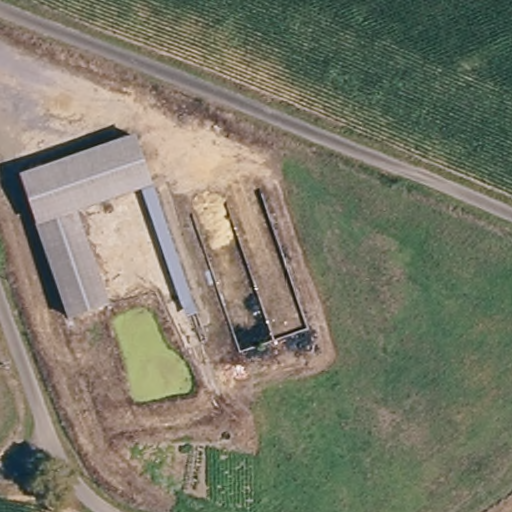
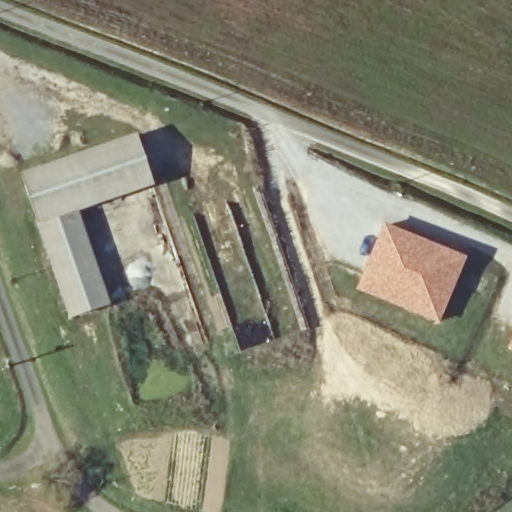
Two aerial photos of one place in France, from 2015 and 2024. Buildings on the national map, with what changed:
unchanged [(130,132),(192,280),(183,284),(140,177),(73,207),(108,294),(70,311),(18,178),(130,132)]
new [(383,222),(467,256),(439,324),(355,290),(383,222)]
new [(512,337),(512,349),(507,347),(512,337)]

